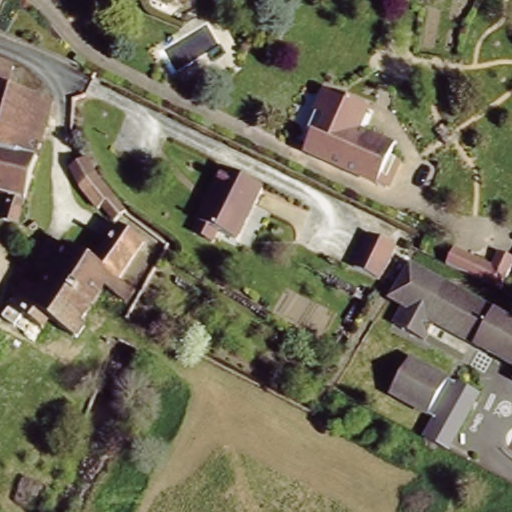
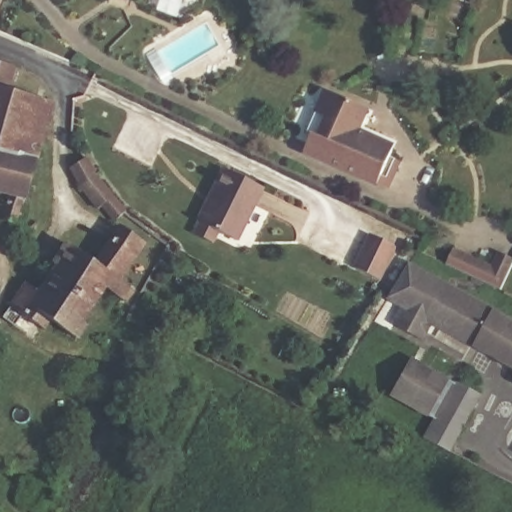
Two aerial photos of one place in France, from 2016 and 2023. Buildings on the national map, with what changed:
unchanged [(39,156),(0,146),(0,62),(15,68),(10,79),(19,82),(16,91),(55,101),(39,156)]
unchanged [(310,132),(316,135),(325,116),(316,112),(327,89),(365,106),(355,127),(380,139),(377,144),(392,150),(390,155),(399,160),(385,189),(302,150),(310,132)]
unchanged [(20,221),(3,218),(8,193),(0,191),(0,146),(39,156),(20,221)]
unchanged [(100,179),(128,210),(118,219),(105,205),(101,207),(84,191),(72,166),(72,165),(81,160),(86,157),(100,179)]
unchanged [(195,230),(200,219),(211,196),(207,195),(222,165),(260,183),(235,236),(218,228),(213,239),(195,230)]
unchanged [(57,259),(62,263),(73,250),(90,262),(115,232),(118,227),(139,242),(113,278),(122,285),(117,292),(113,298),(96,285),(86,300),(83,297),(50,269),(57,259)]
unchanged [(375,234),(396,245),(379,275),(359,263),(375,234)]
unchanged [(488,285),(462,273),(471,257),(492,267),(500,252),(505,255),(512,258),(512,266),(500,290),(488,285)]
unchanged [(477,343),(434,318),(429,327),(396,308),(406,292),(393,285),(408,260),(497,309),(477,343)]
unchanged [(83,297),(86,300),(73,320),(80,325),(72,335),(64,330),(46,318),(39,327),(29,321),(24,327),(23,328),(16,325),(8,320),(5,318),(10,299),(22,282),(36,290),(50,269),(83,297)]
unchanged [(512,363),(477,343),(497,309),(512,318),(512,363)]
unchanged [(473,396),(444,450),(419,440),(431,419),(387,401),(405,362),(473,396)]

